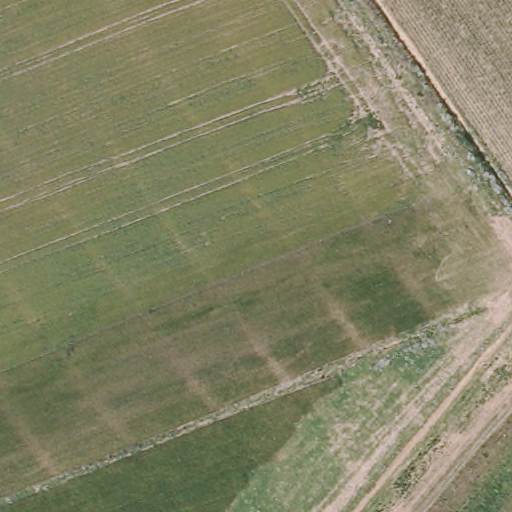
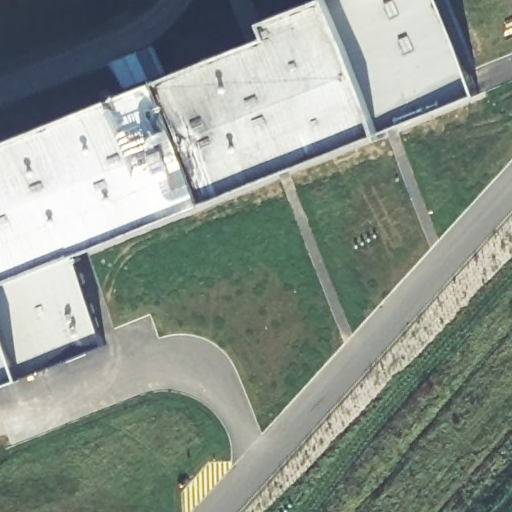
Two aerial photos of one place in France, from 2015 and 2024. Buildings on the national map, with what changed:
new [(273,37),(267,22),(320,0),(440,0),(477,95),(381,133),(211,201),(70,257),(105,346),(20,378),(0,387),(0,144),(160,81),(273,37)]

